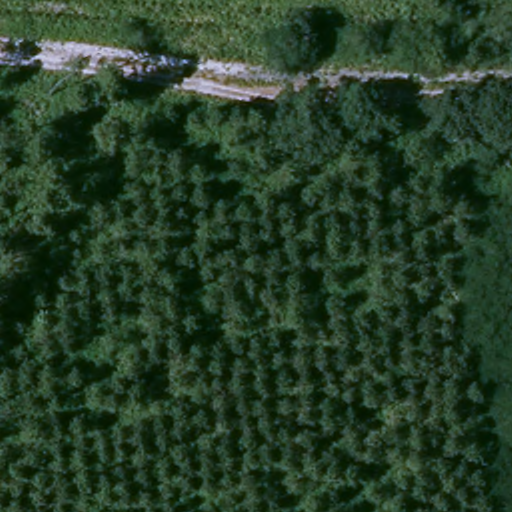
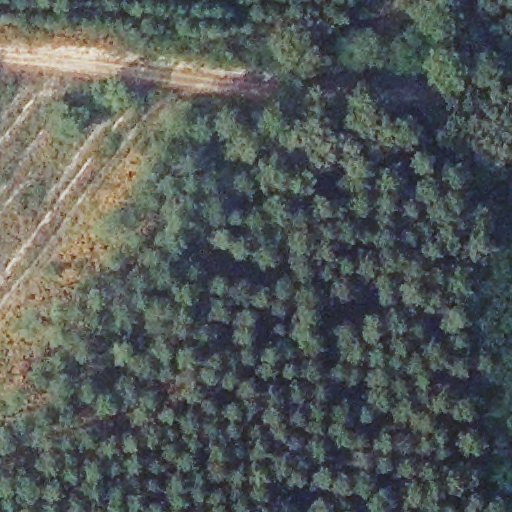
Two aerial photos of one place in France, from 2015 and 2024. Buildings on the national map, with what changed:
[]

